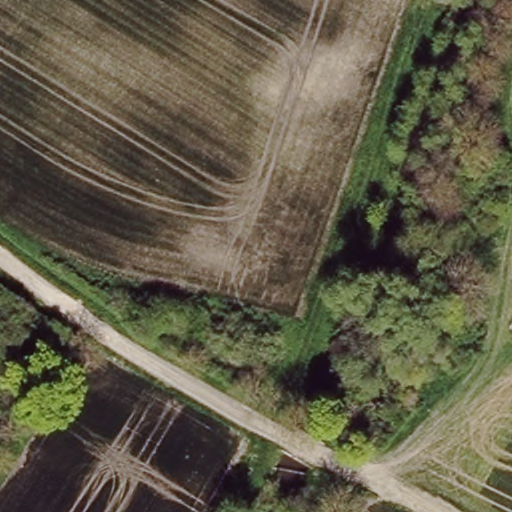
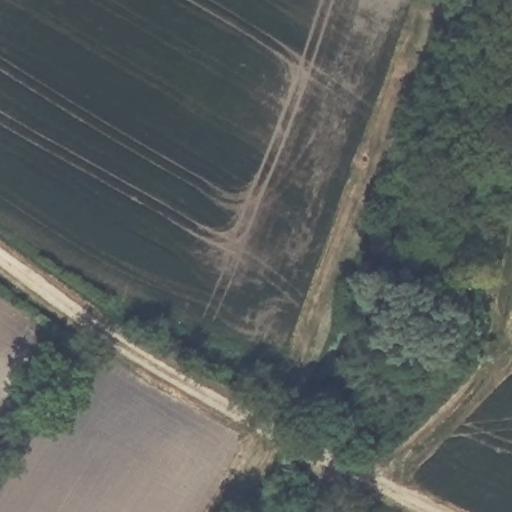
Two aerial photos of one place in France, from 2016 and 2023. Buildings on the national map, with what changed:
unchanged [(459,223),(453,232),(444,227),(449,218),(459,223)]

